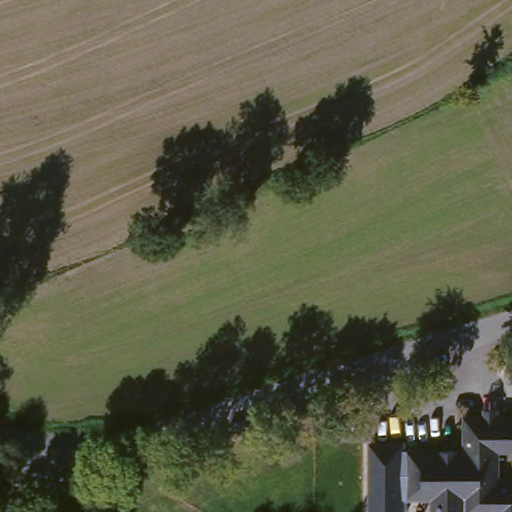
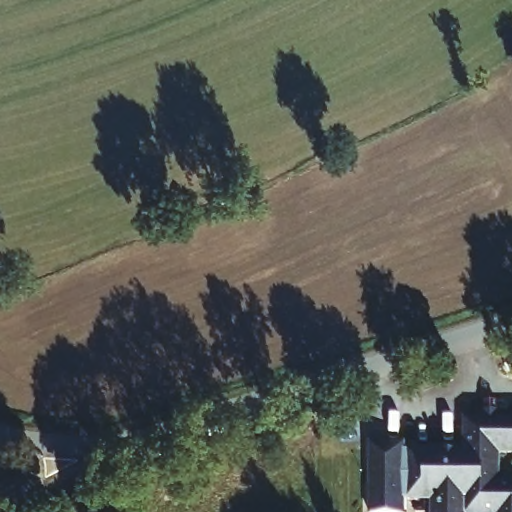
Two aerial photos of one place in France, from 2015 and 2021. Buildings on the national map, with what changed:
unchanged [(401,512),(368,512),(368,446),(401,446),(401,452),(462,452),(462,421),(480,421),(480,412),(496,412),(496,421),(512,421),(512,453),(496,453),(496,483),(512,483),(512,512),(430,512),(430,501),(401,501),(401,512)]

